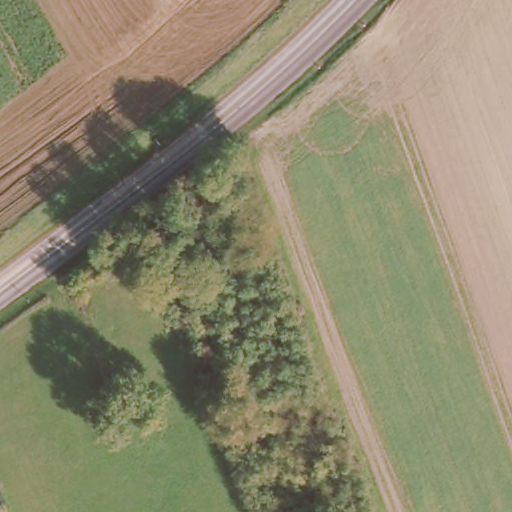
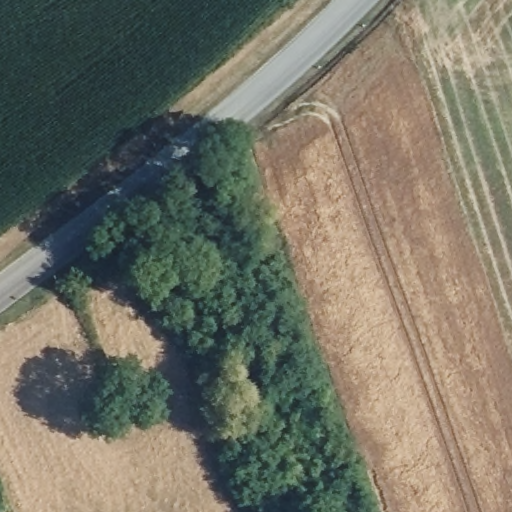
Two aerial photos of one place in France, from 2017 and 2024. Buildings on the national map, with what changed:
unchanged [(77,301),(82,299),(89,316),(83,319),(77,301)]

